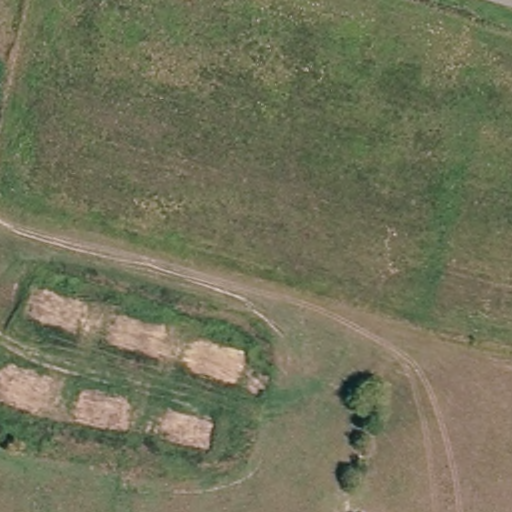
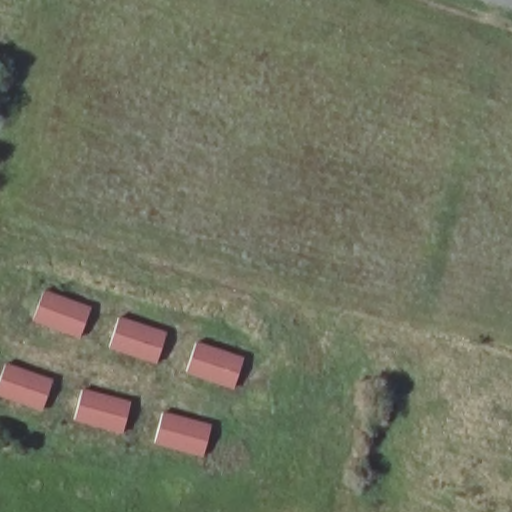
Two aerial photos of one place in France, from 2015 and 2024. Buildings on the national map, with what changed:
new [(32,322),(44,290),(91,307),(79,339),(32,322)]
new [(167,332),(156,363),(109,348),(119,317),(167,332)]
new [(244,357),(234,389),(186,374),(197,342),(244,357)]
new [(0,397),(0,380),(6,363),(53,380),(41,412),(0,397)]
new [(74,421),(83,389),(131,402),(122,434),(74,421)]
new [(211,425),(204,453),(156,440),(163,413),(211,425)]

